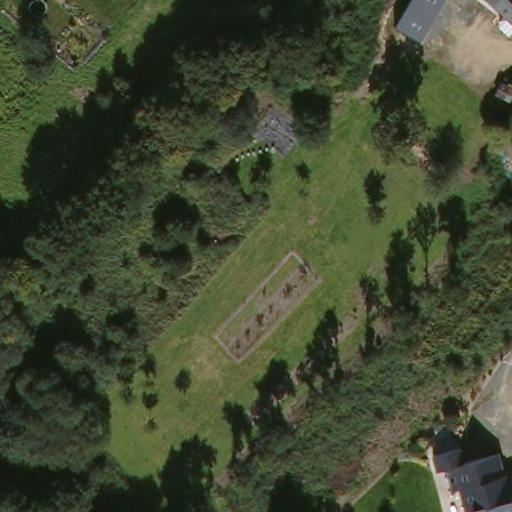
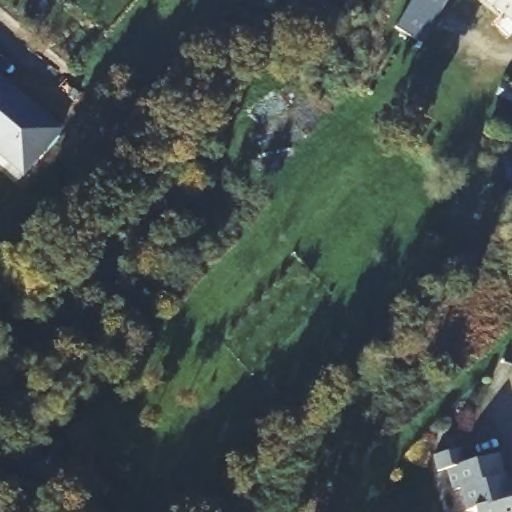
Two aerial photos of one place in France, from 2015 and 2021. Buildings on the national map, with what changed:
unchanged [(421,43),(395,28),(411,0),(444,0),(421,43)]
unchanged [(508,30),(499,23),(499,16),(504,10),(493,0),(512,0),(512,26),(508,30)]
new [(59,132),(22,176),(0,158),(0,91),(4,86),(59,132)]
unchanged [(469,462),(498,455),(504,475),(511,474),(512,479),(512,512),(480,512),(479,508),(471,510),(465,487),(459,490),(452,468),(443,470),(439,455),(464,448),(469,462)]

